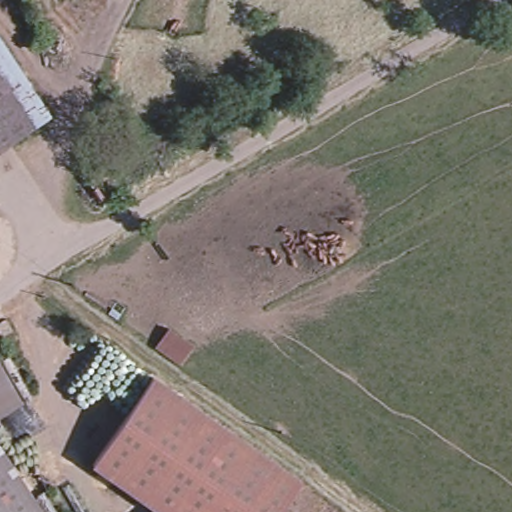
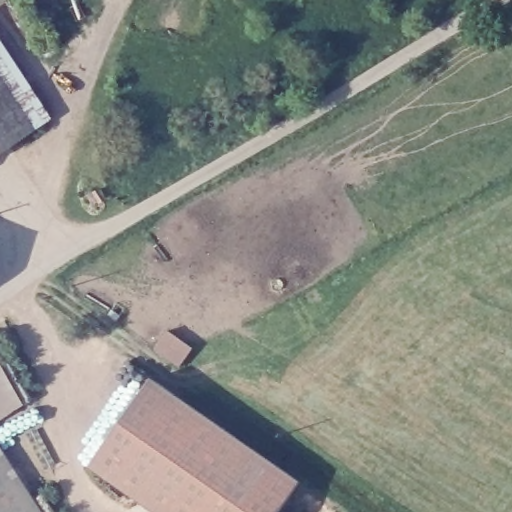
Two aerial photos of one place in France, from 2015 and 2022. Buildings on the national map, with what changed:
unchanged [(33,130),(0,80),(0,49),(47,121),(33,130)]
unchanged [(0,152),(0,80),(33,130),(0,152)]
unchanged [(165,323),(196,345),(178,373),(147,351),(165,323)]
unchanged [(0,370),(22,404),(0,419),(0,370)]
unchanged [(160,512),(91,463),(152,377),(300,482),(278,512),(160,512)]
unchanged [(0,512),(0,456),(36,512),(0,512)]

